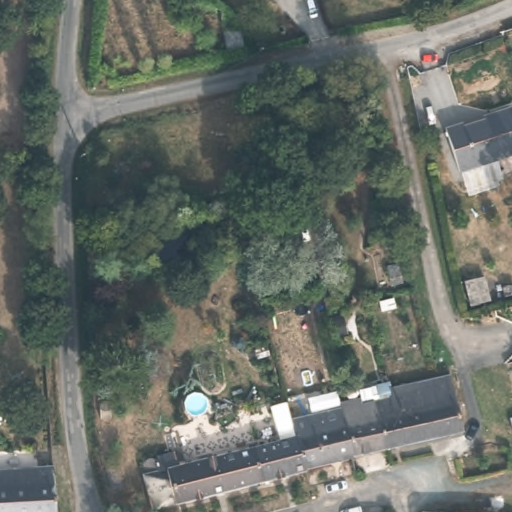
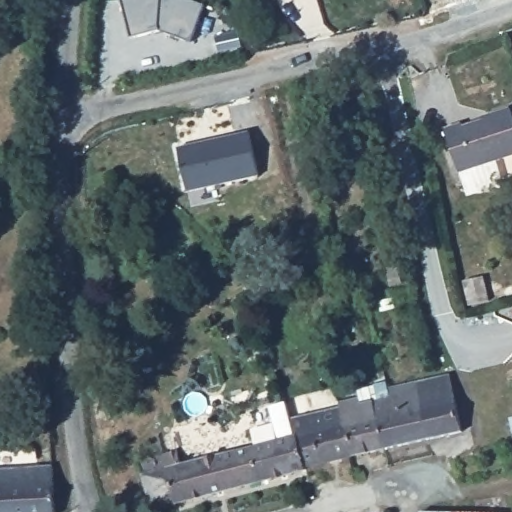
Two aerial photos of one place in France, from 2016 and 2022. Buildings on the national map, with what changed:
new [(205,6),(190,44),(160,31),(152,33),(131,38),(121,0),(191,0),(205,6)]
unchanged [(271,1),(271,0),(273,0),(271,1)]
unchanged [(467,129),(494,119),(493,115),(507,111),(510,114),(512,122),(512,155),(459,171),(456,168),(444,130),(463,125),(467,129)]
new [(249,132),(258,177),(188,192),(178,147),(249,132)]
unchanged [(401,261),(405,281),(393,284),(390,264),(401,261)]
unchanged [(418,381),(451,373),(461,421),(462,429),(432,436),(418,381)]
unchanged [(392,395),(390,388),(418,381),(432,436),(387,448),(375,400),(392,395)]
unchanged [(355,398),(362,403),(375,400),(387,448),(352,456),(340,402),(355,398)]
unchanged [(292,414),(307,467),(295,471),(155,506),(145,471),(151,459),(171,454),(180,465),(282,440),(275,405),(288,401),(292,414)]
unchanged [(352,456),(307,467),(292,414),(340,402),(352,456)]
unchanged [(512,416),(512,431),(505,433),(502,418),(512,416)]
unchanged [(50,465),(55,512),(0,512),(0,470),(50,465)]
unchanged [(470,510),(512,510),(512,512),(417,512),(417,505),(470,510)]

